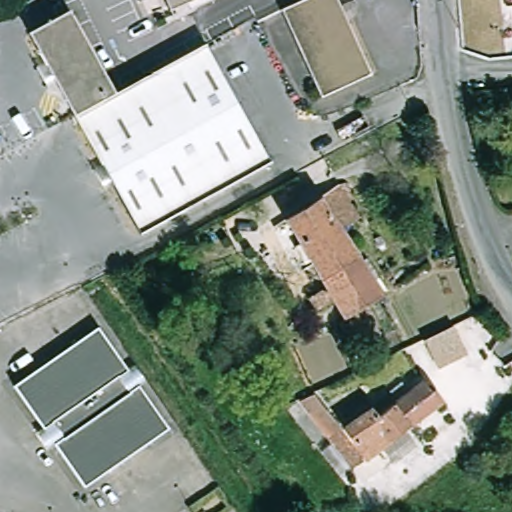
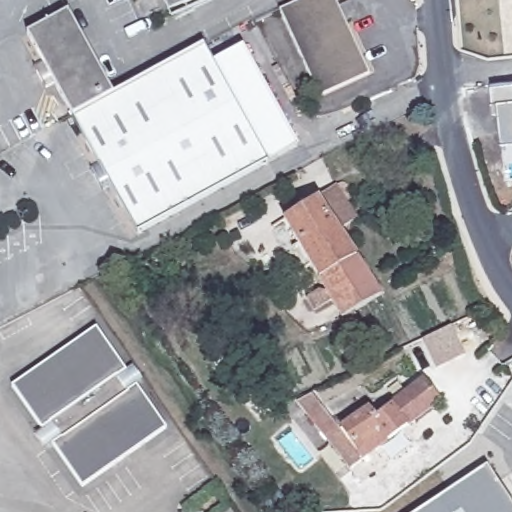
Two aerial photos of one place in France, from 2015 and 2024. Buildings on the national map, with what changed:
unchanged [(205,0),(189,7),(172,16),(164,0),(205,0)]
unchanged [(372,72),(321,95),(317,87),(281,7),(297,0),(340,0),(364,52),(372,72)]
unchanged [(254,135),(269,164),(135,232),(133,228),(88,139),(74,111),(56,77),(47,82),(36,60),(43,56),(45,55),(30,26),(72,5),(115,89),(206,41),(210,48),(254,135)]
new [(501,116),(494,116),(492,88),(512,86),(512,145),(502,146),(501,116)]
unchanged [(285,220),(338,186),(342,185),(346,186),(348,188),(349,190),(348,192),(347,193),(350,200),(345,203),(355,220),(339,230),(380,295),(340,319),(330,301),(313,310),(306,297),(318,291),(324,291),(285,220)]
unchanged [(448,326),(461,353),(432,367),(420,339),(448,326)]
unchanged [(34,431),(42,425),(15,384),(98,328),(125,369),(134,364),(145,380),(137,386),(165,427),(82,483),(54,442),(45,447),(34,431)]
unchanged [(368,459),(359,447),(355,451),(364,462),(349,474),(296,405),(312,398),(339,433),(367,410),(374,418),(422,385),(438,404),(368,459)]
new [(512,503),(512,512),(417,512),(487,466),(512,503)]

